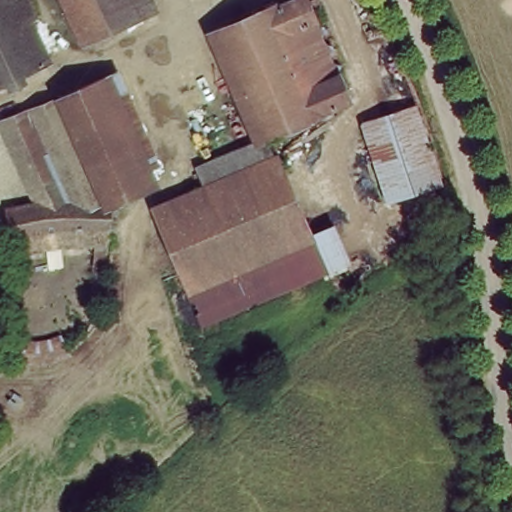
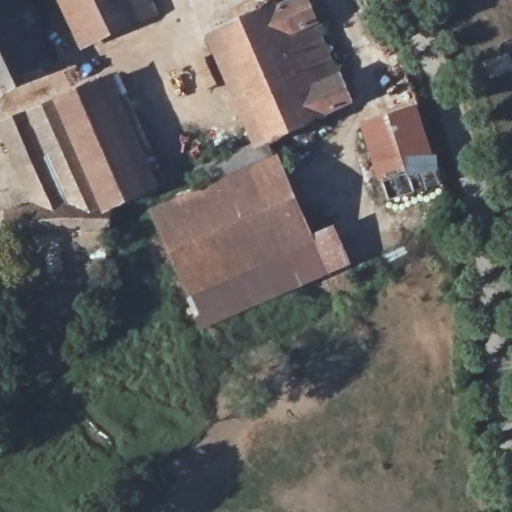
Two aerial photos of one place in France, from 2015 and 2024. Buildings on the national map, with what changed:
unchanged [(32,0),(40,16),(29,23),(50,63),(0,90),(0,0),(32,0)]
unchanged [(88,52),(58,0),(145,0),(154,17),(88,52)]
unchanged [(226,209),(216,190),(263,162),(207,60),(293,17),(308,17),(301,31),(304,37),(313,39),(309,46),(313,53),(323,54),(318,62),(322,70),(334,71),(328,81),(332,87),(343,87),(337,97),(341,105),(351,104),(271,149),(286,177),(226,209)]
unchanged [(92,83),(151,195),(122,211),(104,247),(17,262),(7,216),(37,210),(86,201),(37,111),(92,83)]
unchanged [(387,206),(359,127),(418,107),(443,189),(387,206)]
unchanged [(86,201),(37,210),(0,138),(0,130),(37,111),(86,201)]
unchanged [(208,287),(180,234),(226,209),(286,177),(316,232),(208,287)]
unchanged [(331,261),(225,319),(208,287),(316,232),(331,261)]
unchanged [(32,348),(60,341),(70,365),(46,371),(27,371),(8,367),(0,364),(0,332),(32,348)]

